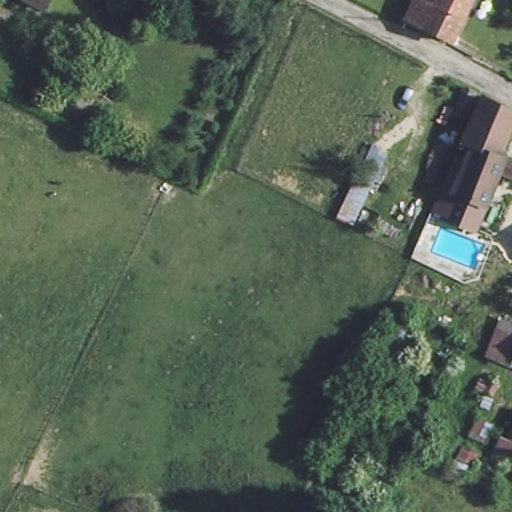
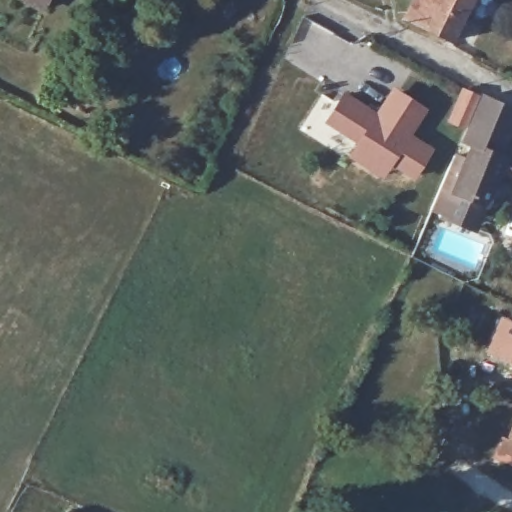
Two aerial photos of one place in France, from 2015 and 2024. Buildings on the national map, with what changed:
unchanged [(46,6),(33,0),(49,0),(46,6)]
unchanged [(405,16),(413,0),(465,0),(447,37),(405,16)]
new [(355,144),(322,122),(343,90),(375,111),(391,86),(427,108),(411,135),(433,148),(412,181),(389,165),(381,179),(347,157),(355,144)]
unchanged [(454,191),(471,145),(465,143),(484,97),(512,111),(512,118),(499,156),(512,161),(512,177),(512,176),(500,172),(487,204),(477,227),(444,214),(454,191)]
unchanged [(500,319),(512,325),(512,357),(487,345),(500,319)]
unchanged [(512,430),(512,464),(498,457),(512,430)]

